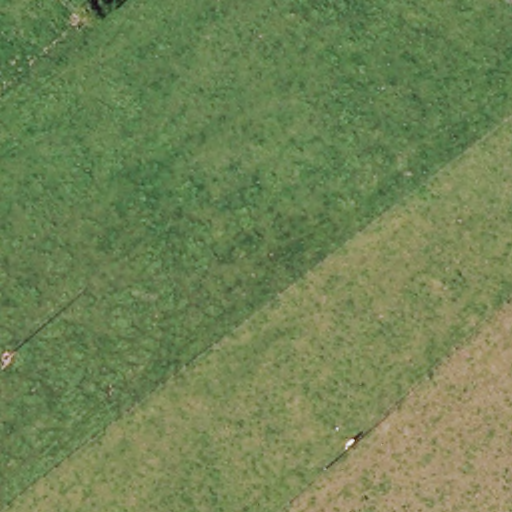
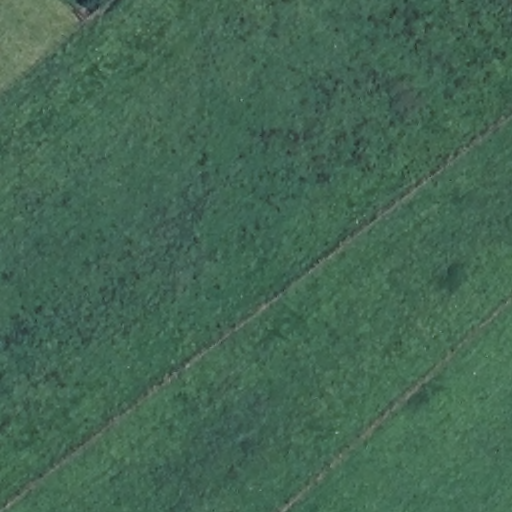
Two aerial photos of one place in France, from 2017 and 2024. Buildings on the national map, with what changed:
[]

